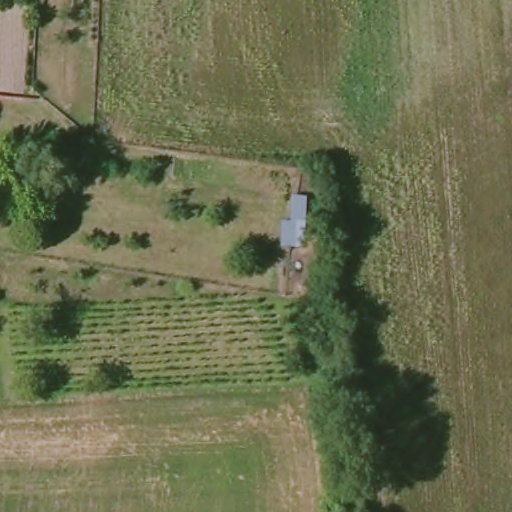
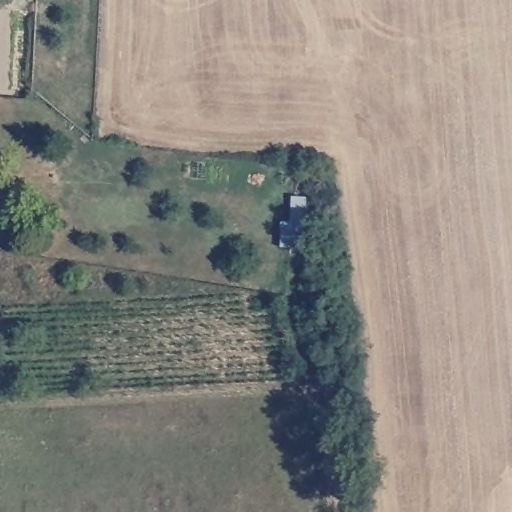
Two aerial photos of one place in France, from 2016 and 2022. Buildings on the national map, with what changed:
unchanged [(284,222),(293,222),(296,196),(314,196),(314,248),(284,250),(284,222)]

